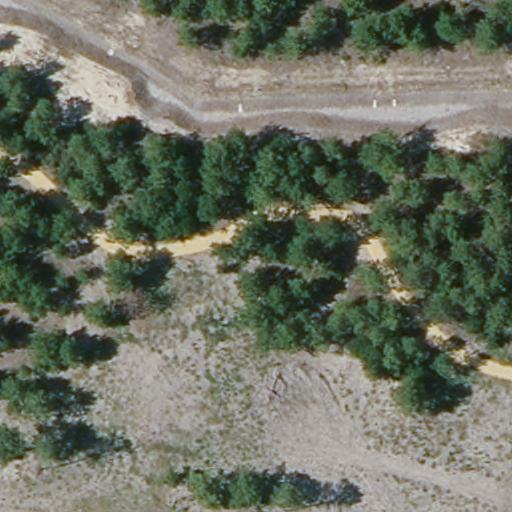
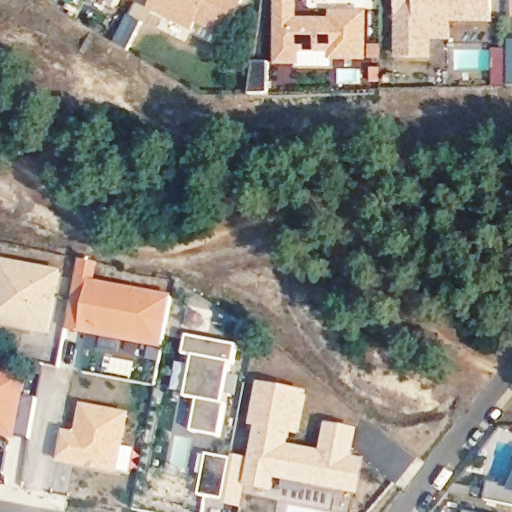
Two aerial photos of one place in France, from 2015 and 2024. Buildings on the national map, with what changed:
new [(200,24),(194,32),(151,9),(156,0),(247,0),(228,39),(200,24)]
new [(302,0),(301,14),(340,14),(340,7),(372,7),(371,50),(339,50),(339,42),(305,42),(305,55),(285,55),(285,0),(302,0)]
new [(437,48),(406,47),(406,0),(499,0),(498,11),(478,11),(478,20),(458,20),(458,31),(437,31),(437,48)]
new [(63,272),(51,337),(0,327),(0,260),(63,272)]
new [(100,263),(97,282),(173,297),(164,350),(68,331),(79,261),(100,263)]
new [(239,347),(234,365),(230,363),(222,405),(230,406),(223,439),(194,433),(199,402),(188,400),(196,358),(186,356),(189,337),(239,347)]
new [(0,434),(0,371),(32,377),(27,398),(40,400),(33,440),(0,434)]
new [(310,393),(303,437),(292,434),(290,447),(323,453),(328,425),(360,430),(354,458),(368,461),(362,496),(278,481),(275,495),(247,488),(258,429),(251,428),(260,383),(310,393)]
new [(132,414),(120,476),(57,464),(64,432),(77,434),(83,406),(132,414)]
new [(201,497),(209,456),(232,461),(225,501),(201,497)]
new [(493,484),(512,488),(512,506),(489,502),(493,484)]

